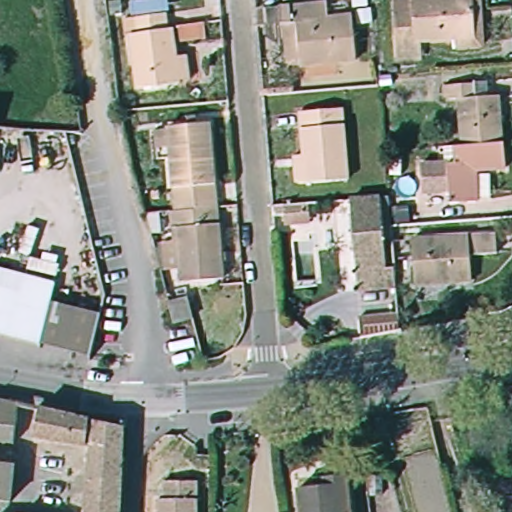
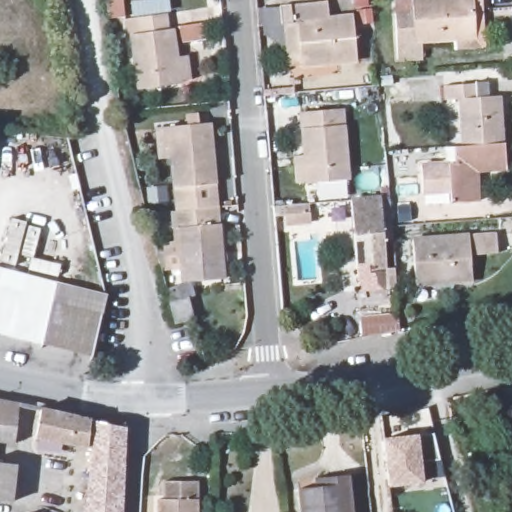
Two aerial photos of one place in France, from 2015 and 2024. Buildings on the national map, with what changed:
unchanged [(472,0),(475,36),(424,42),(425,58),(396,59),(393,17),(413,16),(412,0),(417,0),(472,0)]
unchanged [(328,21),(352,20),(356,62),(309,64),(305,24),(297,24),(281,23),(280,8),(295,6),(326,4),(328,21)]
unchanged [(162,10),(165,26),(173,26),(176,82),(134,85),(128,28),(137,27),(136,12),(162,10)]
unchanged [(465,141),(460,98),(448,98),(448,83),(473,83),(475,96),(500,95),(503,138),(465,141)]
unchanged [(340,118),(345,173),(305,175),(301,121),(340,118)]
unchanged [(211,123),(216,187),(219,196),(217,199),(175,201),(170,127),(211,123)]
unchanged [(505,168),(481,172),(483,200),(454,202),(452,165),(460,162),(458,142),(465,141),(503,138),(505,168)]
unchanged [(384,206),(390,276),(360,279),(355,208),(384,206)]
unchanged [(216,209),(223,277),(186,281),(179,228),(173,227),(173,212),(216,209)]
unchanged [(493,236),(495,257),(470,259),(472,281),(422,286),(416,243),(493,236)]
unchanged [(60,284),(55,302),(103,316),(91,356),(22,337),(0,331),(0,269),(60,284)]
unchanged [(183,303),(186,313),(188,317),(170,322),(165,307),(183,303)]
unchanged [(19,405),(14,445),(0,443),(0,401),(19,405)]
unchanged [(116,512),(84,512),(89,449),(31,438),(34,409),(119,427),(116,512)]
new [(383,438),(418,435),(418,437),(433,434),(440,460),(422,465),(424,484),(389,487),(383,438)]
unchanged [(15,468),(11,507),(0,505),(0,465),(15,468)]
unchanged [(348,512),(298,512),(296,491),(313,489),(311,477),(343,474),(348,512)]
unchanged [(151,503),(160,502),(159,483),(192,482),(193,512),(151,512),(151,503)]

